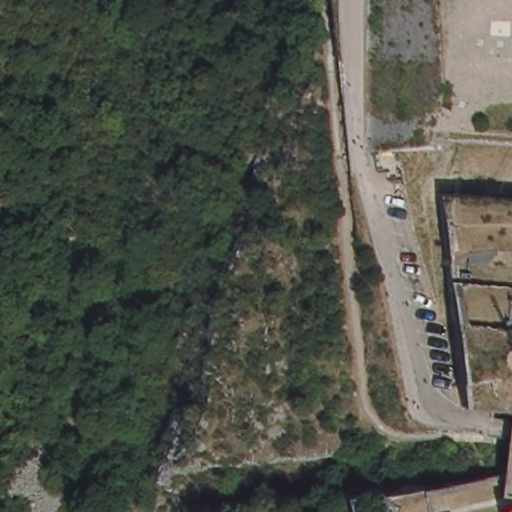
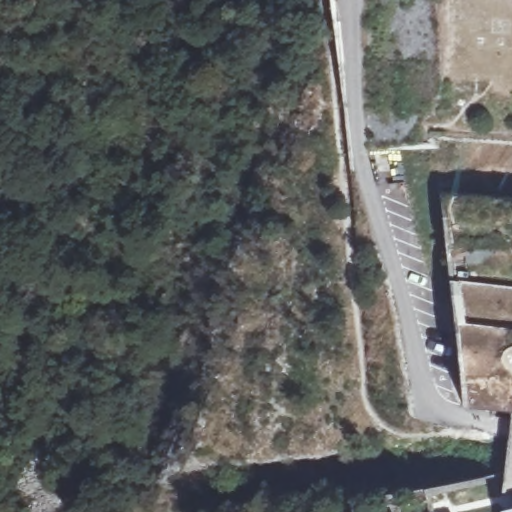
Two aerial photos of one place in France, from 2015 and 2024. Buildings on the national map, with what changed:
unchanged [(471,381),(464,331),(458,293),(456,281),(448,218),(444,196),(512,202),(512,411),(470,407),(471,381)]
unchanged [(511,475),(511,472),(512,465),(512,504),(507,505),(511,475)]
unchanged [(512,504),(512,512),(508,512),(507,505),(512,504)]

